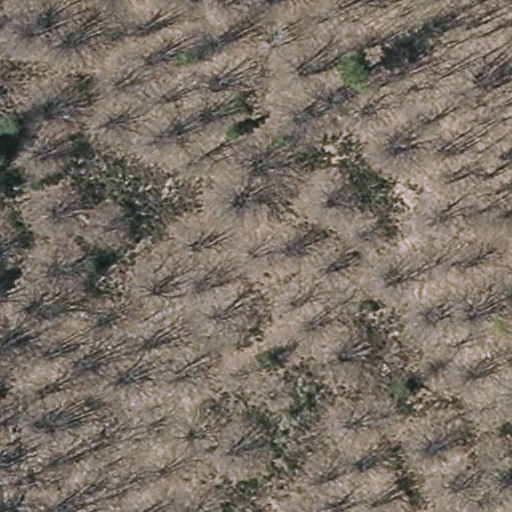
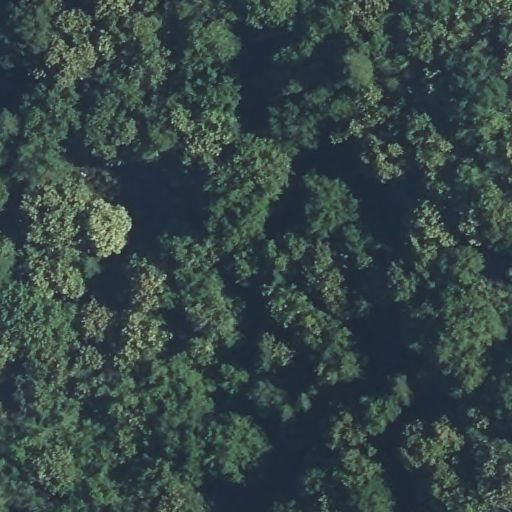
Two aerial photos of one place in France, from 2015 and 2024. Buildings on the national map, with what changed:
[]

